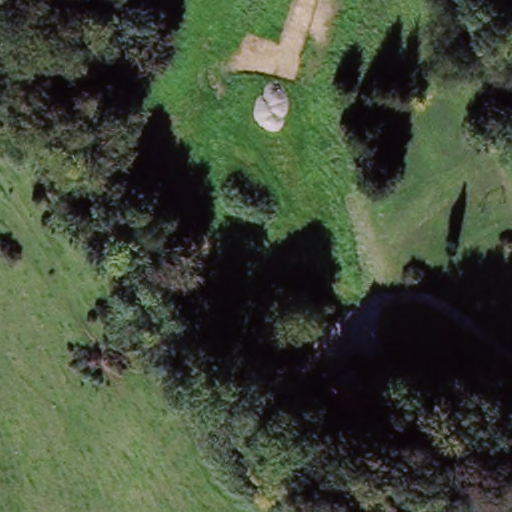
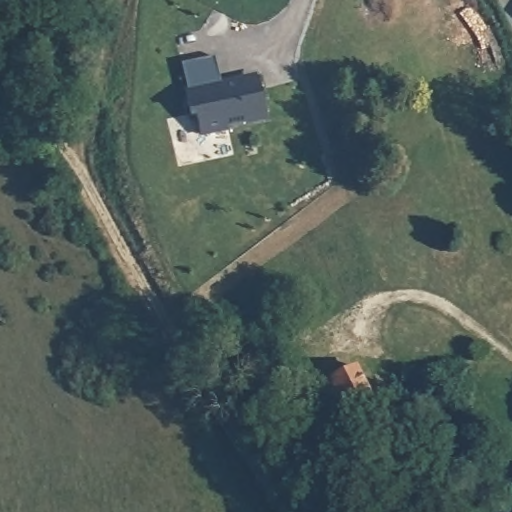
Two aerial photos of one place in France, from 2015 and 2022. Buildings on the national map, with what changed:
new [(215,60),(222,87),(227,86),(227,90),(257,82),(267,121),(228,130),(228,133),(202,139),(197,118),(192,120),(186,96),(188,96),(182,68),(215,60)]
unchanged [(512,113),(512,137),(502,118),(512,113)]
unchanged [(376,406),(347,420),(328,384),(357,370),(376,406)]

